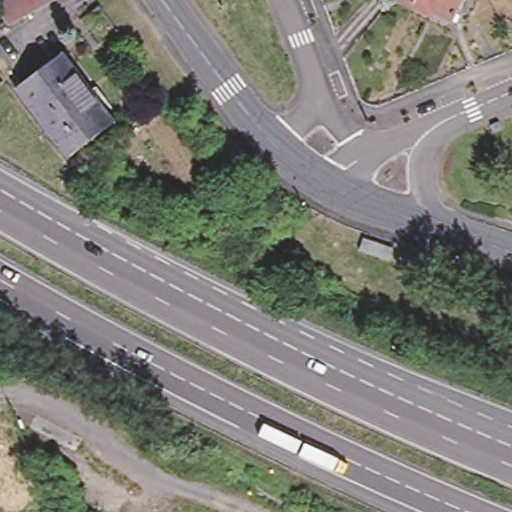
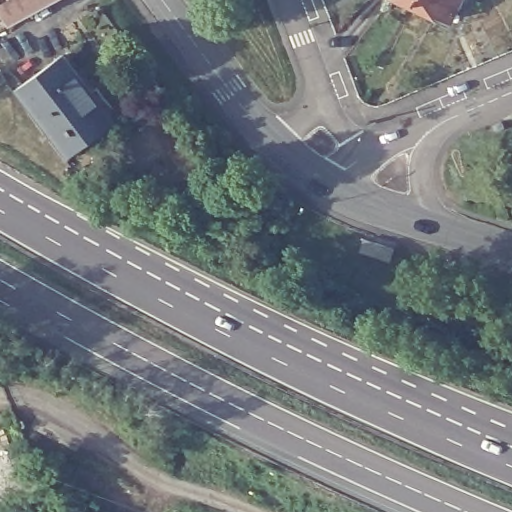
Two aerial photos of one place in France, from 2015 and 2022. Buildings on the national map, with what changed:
unchanged [(0,11),(0,8),(14,0),(62,0),(9,28),(0,11)]
unchanged [(448,12),(432,5),(431,7),(417,0),(453,0),(448,12)]
unchanged [(13,78),(58,44),(111,113),(66,147),(13,78)]

